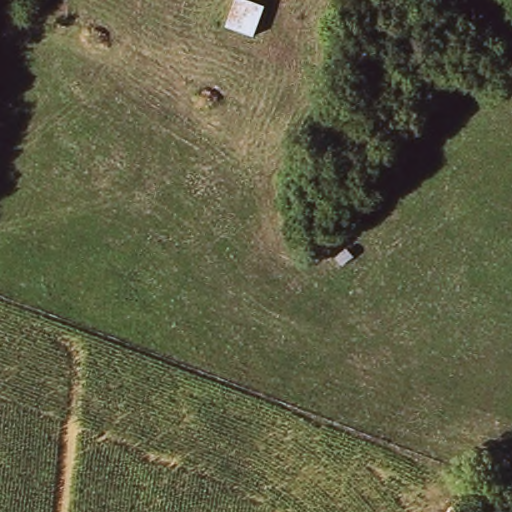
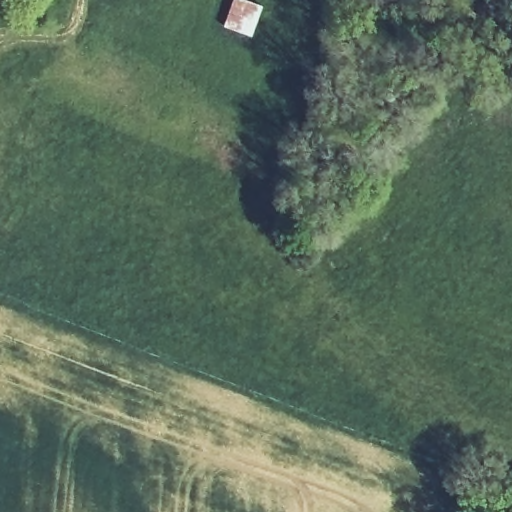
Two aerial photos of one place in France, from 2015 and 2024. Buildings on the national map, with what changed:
unchanged [(221,31),(232,0),(244,0),(262,6),(251,41),(221,31)]

